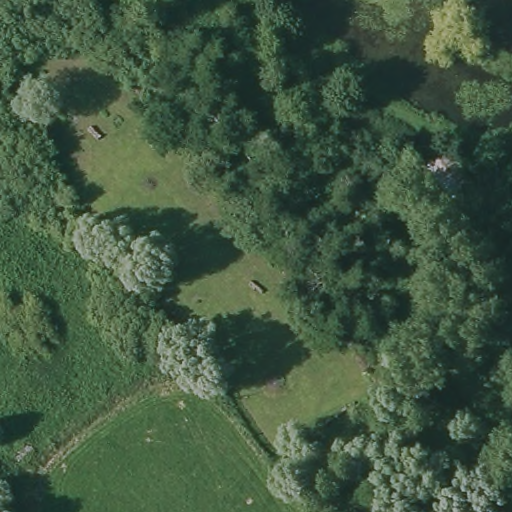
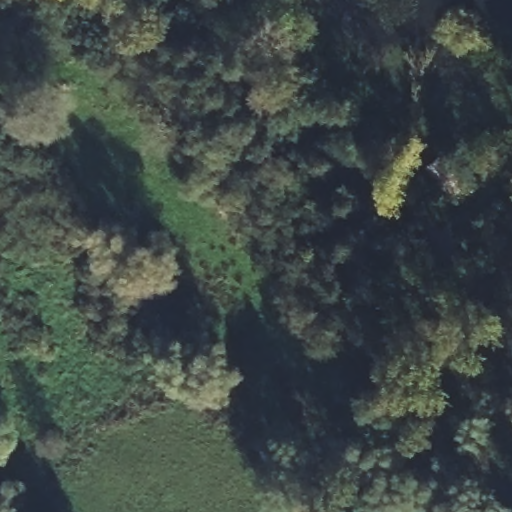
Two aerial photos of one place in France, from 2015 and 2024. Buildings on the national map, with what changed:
unchanged [(450,153),(474,176),(441,204),(419,177),(450,153)]

